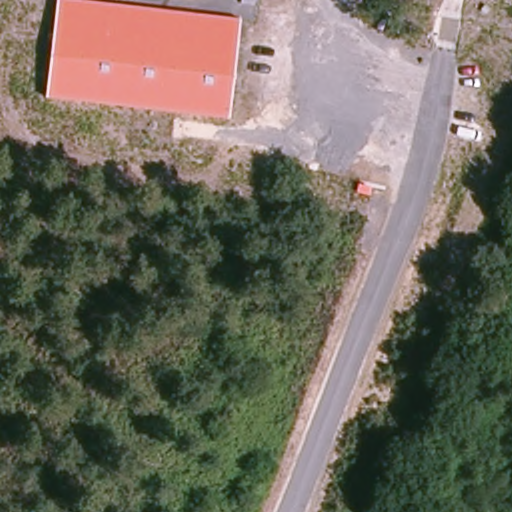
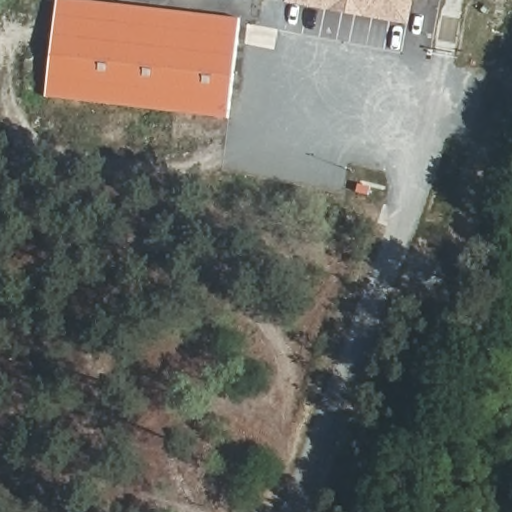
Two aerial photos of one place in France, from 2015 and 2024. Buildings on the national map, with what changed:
unchanged [(44,96),(56,0),(74,0),(239,19),(229,119),(44,96)]
new [(285,4),(286,0),(415,0),(410,26),(285,4)]

